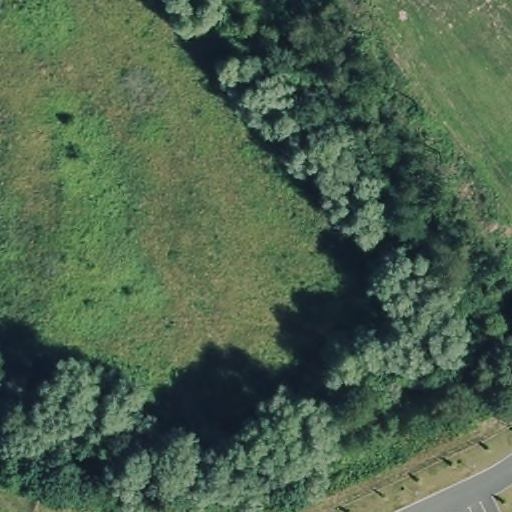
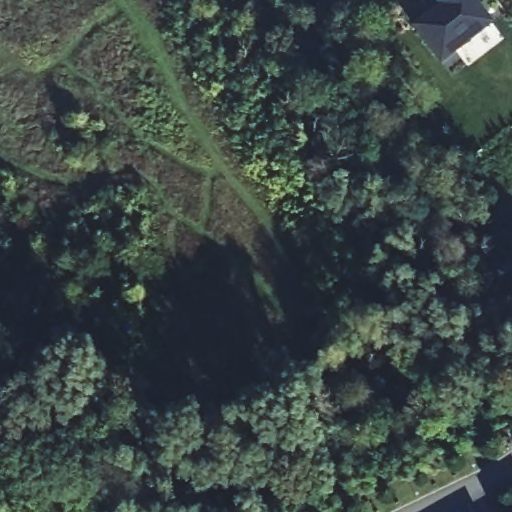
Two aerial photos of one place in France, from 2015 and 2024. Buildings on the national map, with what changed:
new [(411,24),(438,3),(436,0),(473,0),(490,21),(439,60),(411,24)]

